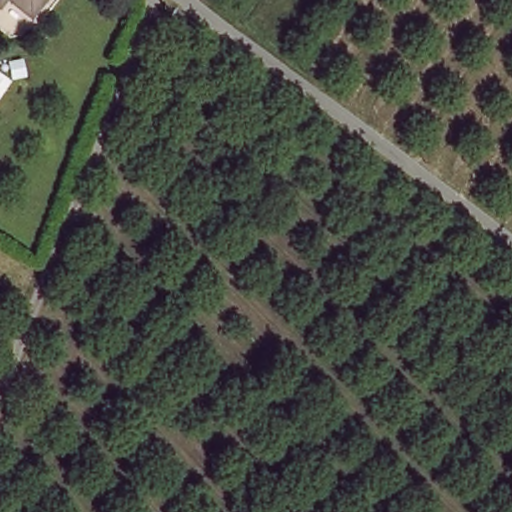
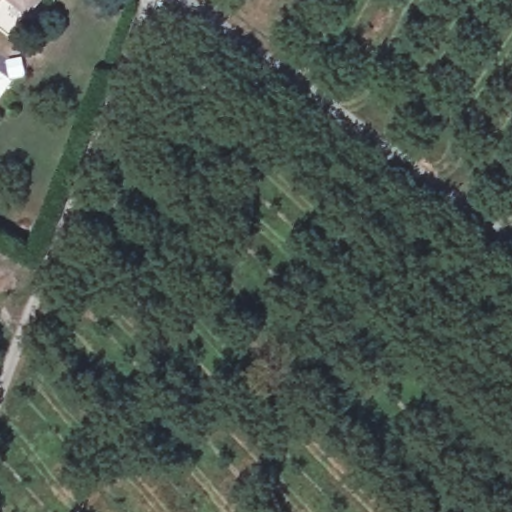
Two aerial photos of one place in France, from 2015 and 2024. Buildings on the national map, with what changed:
unchanged [(32,14),(14,0),(43,0),(32,14)]

